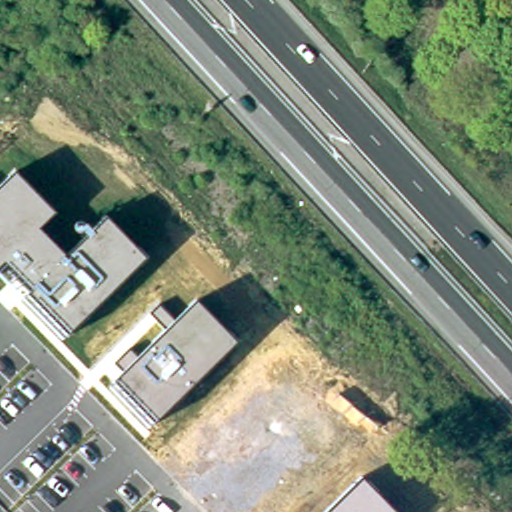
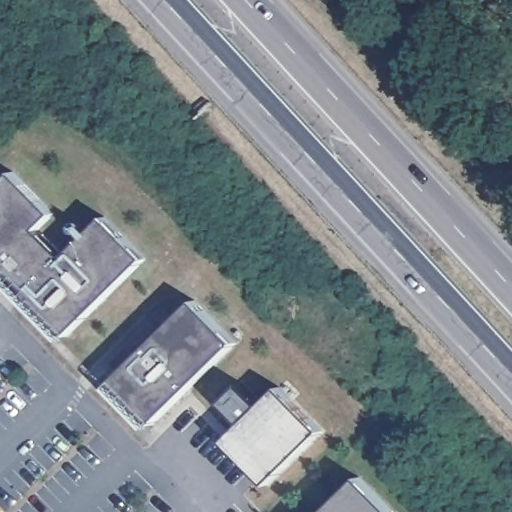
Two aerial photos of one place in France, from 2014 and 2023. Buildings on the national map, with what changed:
unchanged [(37,229),(64,257),(104,217),(146,259),(66,337),(25,294),(30,290),(7,265),(0,271),(0,188),(14,175),(54,213),(37,229)]
unchanged [(237,343),(153,428),(110,384),(195,300),(237,343)]
new [(263,405),(280,387),(323,431),(269,485),(225,441),(235,432),(226,423),(234,415),(222,403),(242,383),(263,405)]
unchanged [(396,512),(325,512),(360,477),(396,512)]

